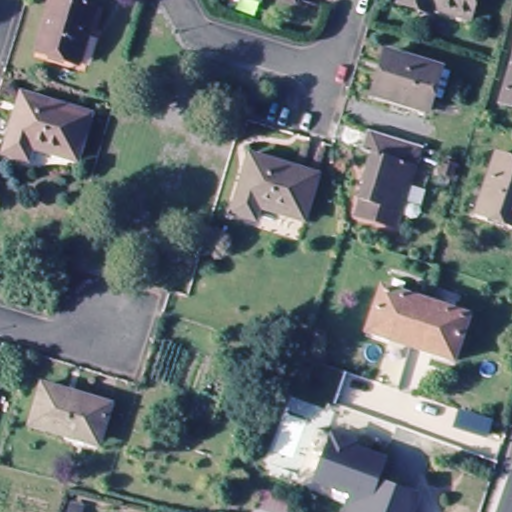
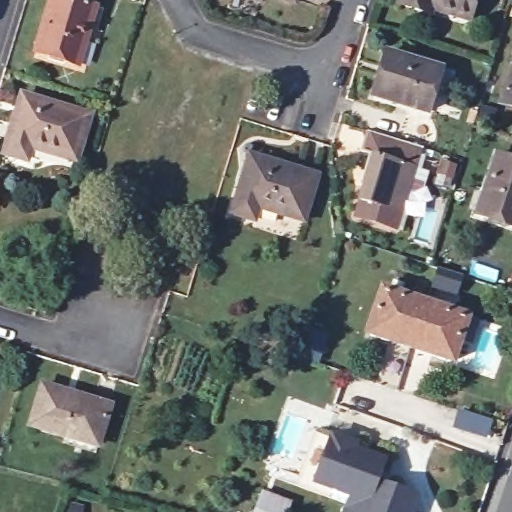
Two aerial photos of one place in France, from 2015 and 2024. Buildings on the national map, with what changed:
unchanged [(81,65),(35,51),(52,0),(75,0),(99,8),(81,65)]
unchanged [(262,0),(261,1),(258,0),(262,0)]
unchanged [(287,0),(296,0),(295,3),(287,0)]
unchanged [(408,0),(477,0),(471,19),(408,0)]
unchanged [(442,69),(429,109),(372,92),(385,51),(442,69)]
unchanged [(512,79),(512,114),(501,110),(512,79)]
unchanged [(89,119),(72,165),(30,151),(25,165),(0,157),(20,97),(89,119)]
unchanged [(426,152),(420,173),(417,172),(397,233),(357,219),(376,160),(365,156),(372,135),(426,152)]
unchanged [(460,157),(455,170),(439,165),(443,153),(460,157)]
unchanged [(318,175),(303,220),(260,206),(256,219),(234,212),(252,154),(318,175)]
unchanged [(512,228),(475,214),(495,155),(512,160),(512,228)]
unchanged [(464,318),(450,362),(431,356),(431,354),(390,339),(388,342),(367,334),(382,290),(464,318)]
unchanged [(111,410),(98,449),(57,436),(55,441),(30,432),(44,388),(111,410)]
unchanged [(458,411),(493,422),(487,440),(452,429),(458,411)]
unchanged [(357,448),(356,453),(387,464),(395,468),(391,479),(383,476),(378,487),(420,504),(417,512),(349,512),(353,499),(301,479),(318,433),(357,448)]
unchanged [(290,504),(287,512),(255,512),(262,493),(290,504)]

